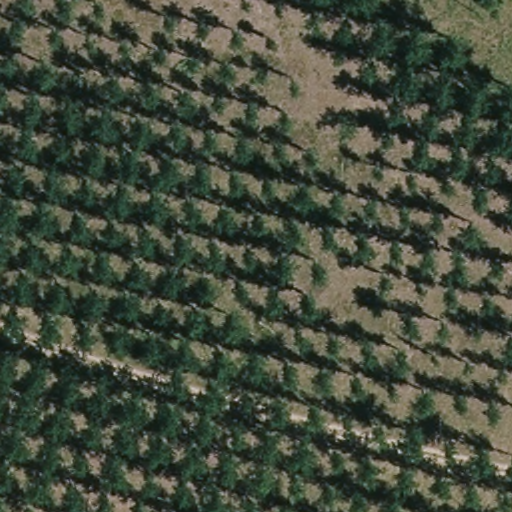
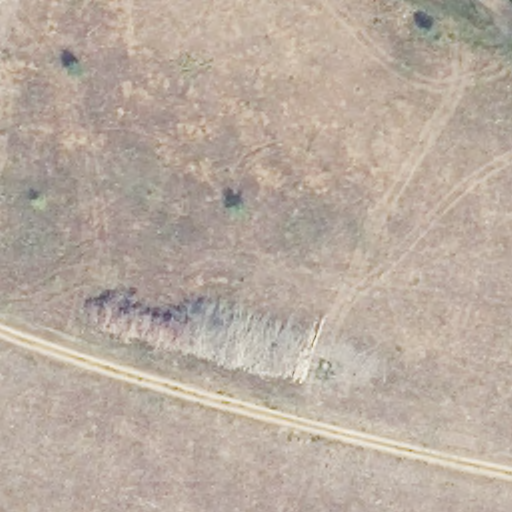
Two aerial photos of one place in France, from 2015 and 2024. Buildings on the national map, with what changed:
[]

